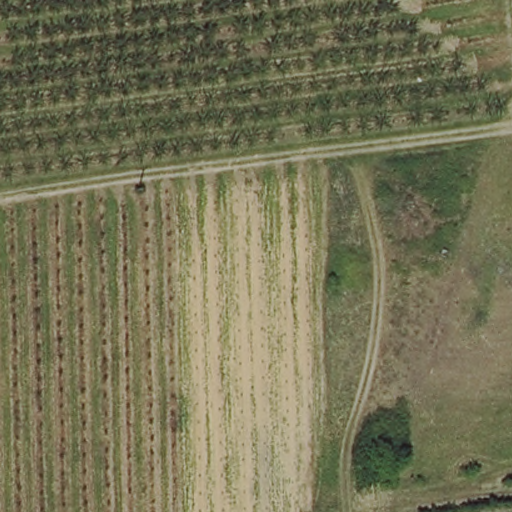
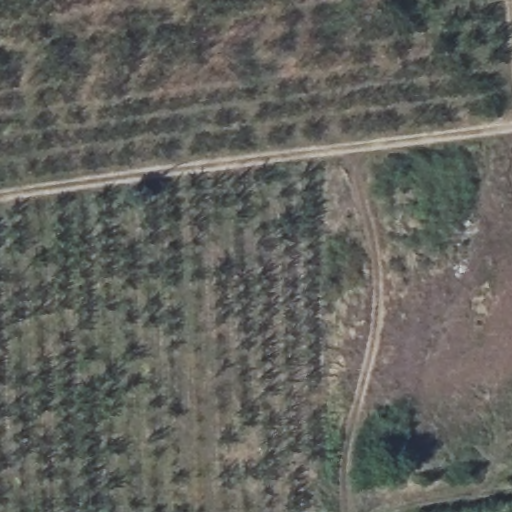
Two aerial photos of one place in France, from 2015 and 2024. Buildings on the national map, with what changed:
[]

